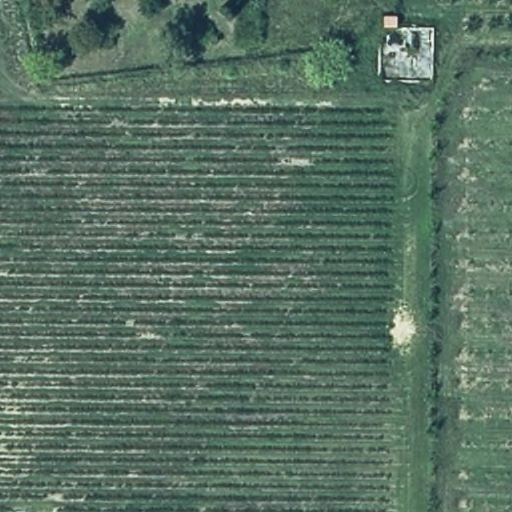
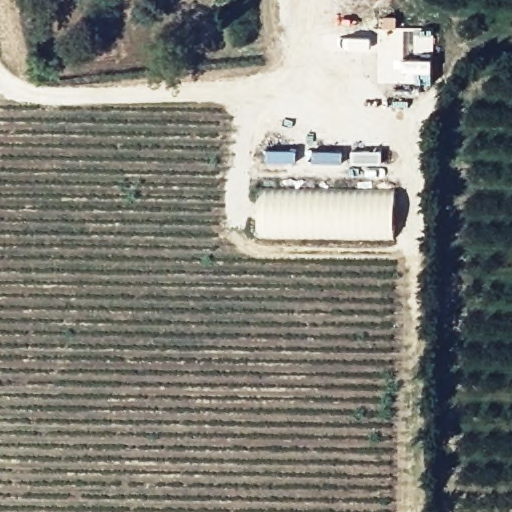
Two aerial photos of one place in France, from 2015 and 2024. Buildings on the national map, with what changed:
new [(395,187),(395,238),(259,236),(260,185),(395,187)]

